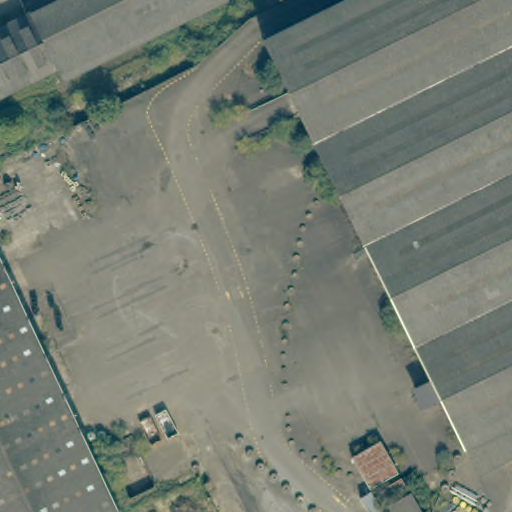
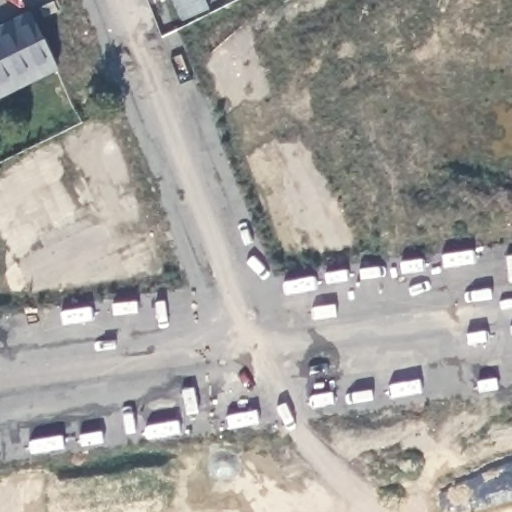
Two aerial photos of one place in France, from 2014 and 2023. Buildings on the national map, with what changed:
demolished [(464,432),(462,433),(262,26),(316,0),(512,0),(512,409),(464,432)]
unchanged [(57,70),(0,99),(0,28),(29,14),(57,70)]
demolished [(0,512),(0,262),(117,512),(0,512)]
demolished [(352,459),(381,442),(398,474),(370,489),(352,459)]
demolished [(380,492),(402,480),(407,490),(385,502),(380,492)]
demolished [(410,497),(418,512),(389,512),(387,509),(410,497)]

